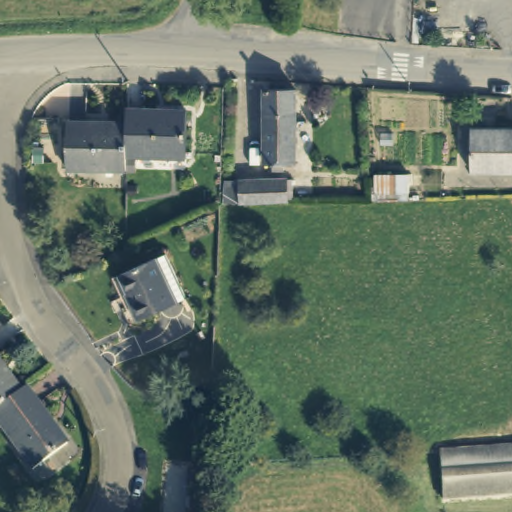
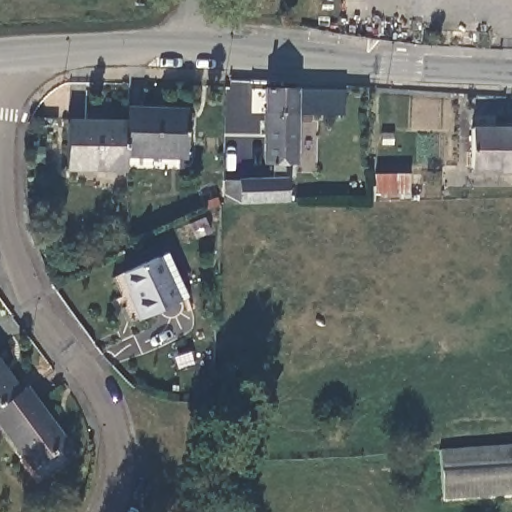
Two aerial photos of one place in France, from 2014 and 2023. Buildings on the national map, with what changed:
unchanged [(297,89),(298,161),(266,161),(267,89),(297,89)]
unchanged [(162,108),(162,105),(182,105),(184,152),(127,153),(126,133),(126,118),(126,109),(162,108)]
unchanged [(67,167),(68,123),(108,123),(109,118),(126,118),(126,133),(127,153),(127,167),(67,167)]
unchanged [(512,173),(468,173),(468,130),(512,129),(512,173)]
unchanged [(387,166),(420,167),(420,186),(386,185),(387,166)]
unchanged [(231,175),(295,173),(295,194),(230,198),(231,175)]
unchanged [(128,306),(131,303),(116,278),(147,259),(155,254),(180,293),(172,298),(171,296),(136,319),(128,306)]
unchanged [(4,368),(6,366),(22,386),(0,403),(0,364),(4,368)]
unchanged [(22,386),(26,383),(71,438),(36,465),(0,420),(0,403),(22,386)]
unchanged [(440,447),(512,443),(512,489),(441,494),(440,447)]

